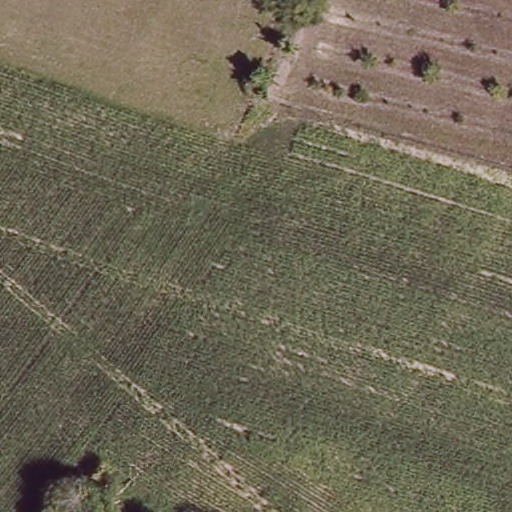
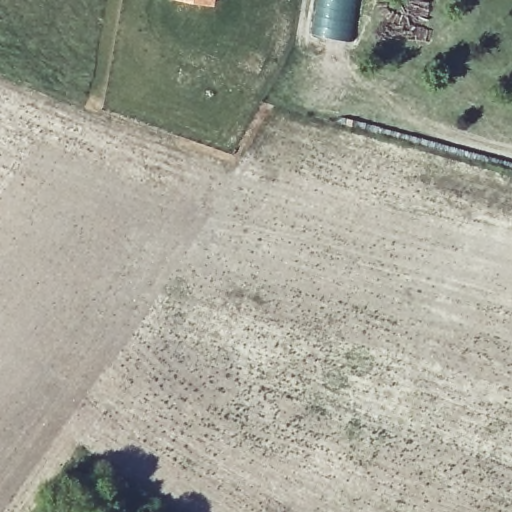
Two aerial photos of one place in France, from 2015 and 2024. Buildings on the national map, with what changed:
new [(190,0),(216,0),(215,5),(190,0)]
new [(353,0),(347,39),(315,33),(320,0),(353,0)]

